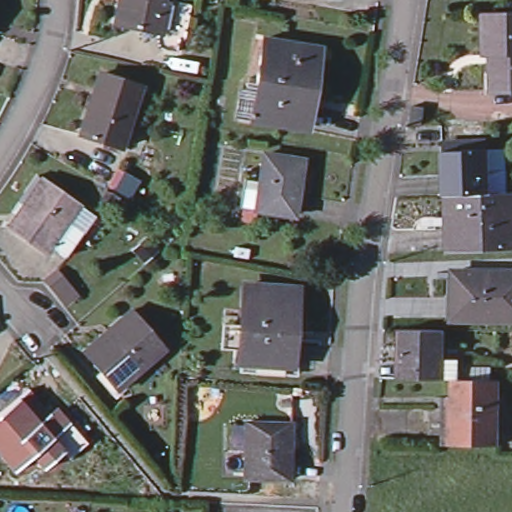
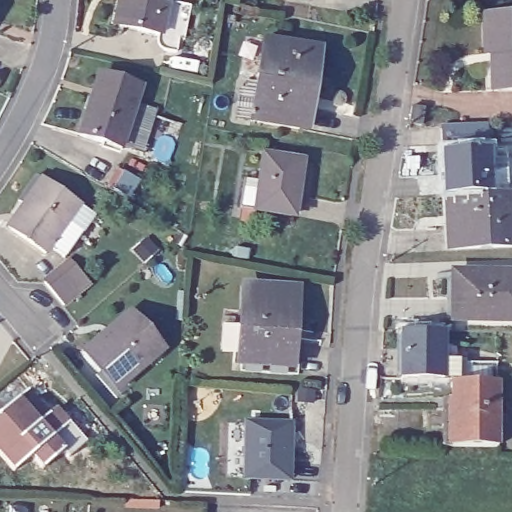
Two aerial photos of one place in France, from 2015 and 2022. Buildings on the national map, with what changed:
unchanged [(113,21),(118,0),(162,0),(156,31),(153,30),(113,21)]
unchanged [(185,3),(177,38),(171,37),(168,50),(158,48),(151,35),(153,30),(156,31),(162,0),(174,0),(185,3)]
unchanged [(484,89),(483,52),(482,14),(512,13),(512,88),(490,89),(484,89)]
unchanged [(320,47),(313,90),(304,89),(299,129),(249,120),(263,38),(320,47)]
unchanged [(120,146),(78,132),(86,106),(89,107),(101,71),(141,84),(120,146)]
unchanged [(445,148),(489,146),(492,191),(448,193),(447,193),(445,148)]
unchanged [(301,159),(293,215),(254,208),(264,153),(301,159)]
unchanged [(64,255),(49,245),(46,250),(9,223),(42,176),(79,203),(93,214),(64,255)]
unchanged [(512,243),(454,245),(454,215),(449,215),(448,193),(492,191),(512,190),(512,243)]
unchanged [(77,291),(63,302),(44,279),(58,267),(77,291)]
unchanged [(512,317),(452,317),(453,269),(512,270),(512,317)]
unchanged [(246,283),(290,285),(288,336),(293,336),(292,361),(243,358),(246,283)]
unchanged [(82,349),(133,307),(163,346),(119,382),(113,387),(98,368),(82,349)]
unchanged [(466,364),(486,364),(487,378),(492,378),(491,444),(446,443),(445,377),(436,377),(396,377),(397,328),(407,328),(437,328),(437,355),(454,356),(454,378),(465,378),(466,364)]
unchanged [(28,388),(49,411),(61,412),(86,441),(68,457),(63,450),(43,468),(31,455),(13,470),(0,454),(0,412),(28,388)]
unchanged [(289,420),(288,476),(242,475),(244,418),(289,420)]

